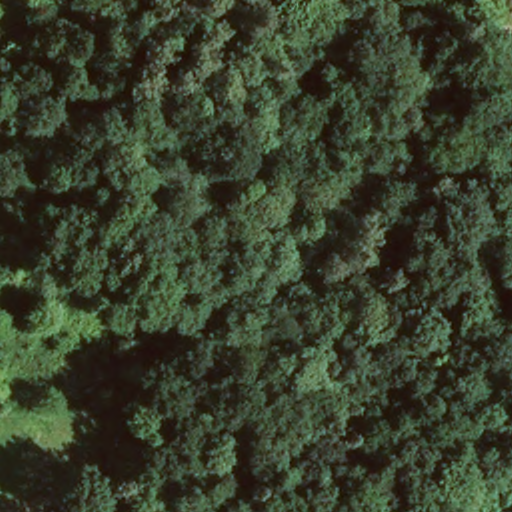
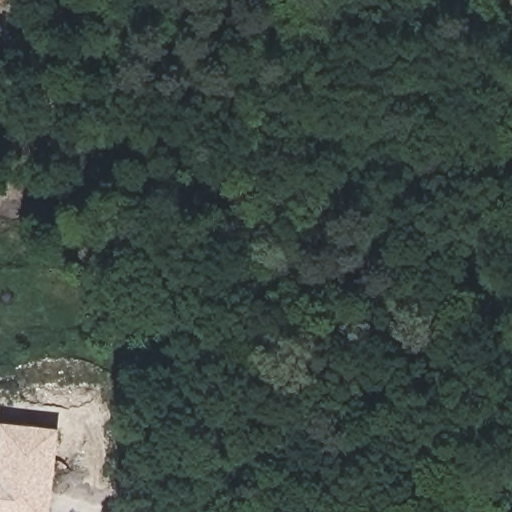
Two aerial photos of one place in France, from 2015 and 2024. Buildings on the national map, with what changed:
new [(50,512),(0,512),(0,434),(2,422),(59,427),(50,512)]

